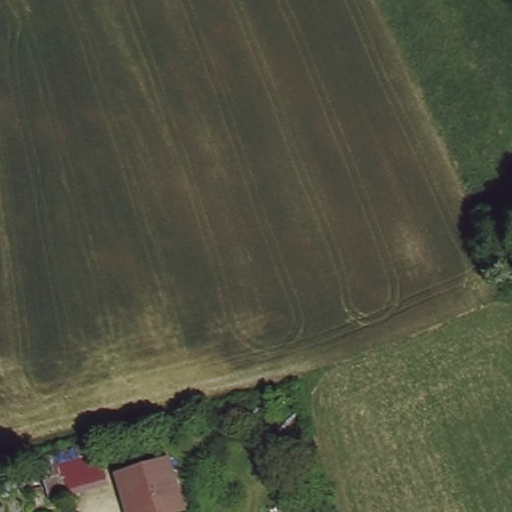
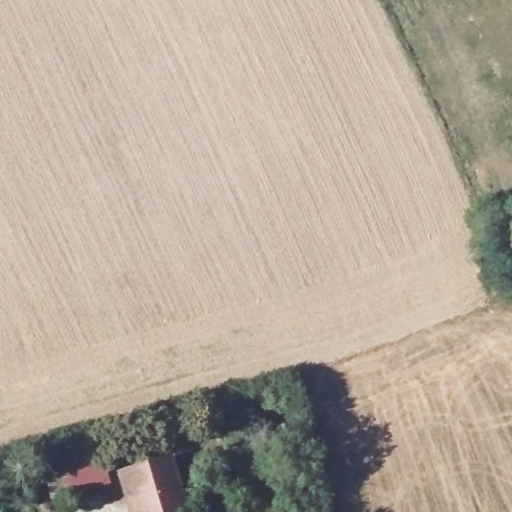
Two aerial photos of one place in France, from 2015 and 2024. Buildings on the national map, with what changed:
unchanged [(105,478),(71,488),(63,462),(100,455),(105,478)]
unchanged [(186,505),(162,512),(133,512),(121,473),(131,470),(171,459),(186,505)]

